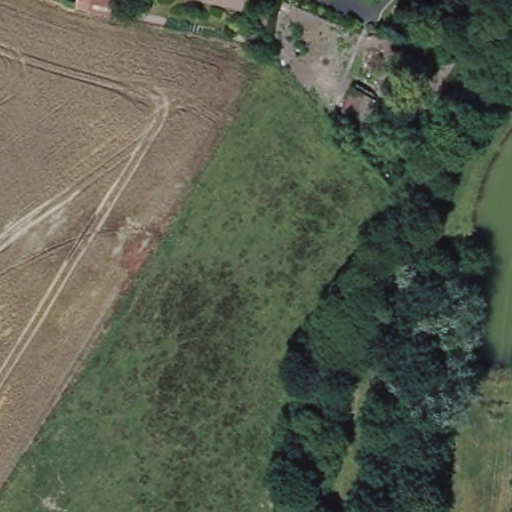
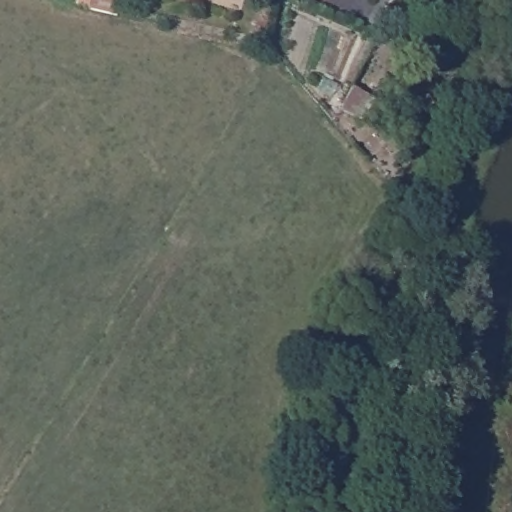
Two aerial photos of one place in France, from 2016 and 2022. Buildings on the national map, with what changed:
unchanged [(86,6),(87,0),(111,0),(110,11),(86,6)]
unchanged [(372,96),(359,119),(340,108),(352,86),(372,96)]

